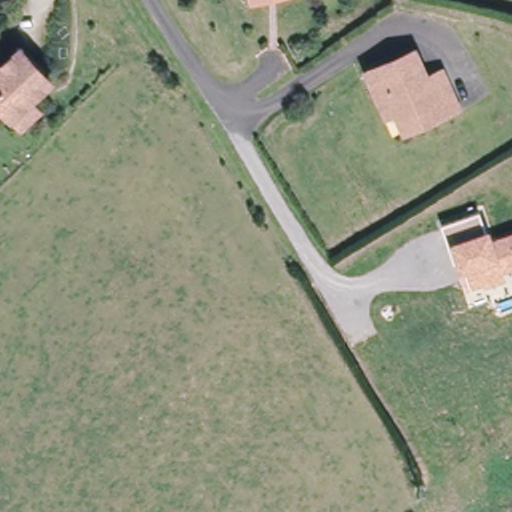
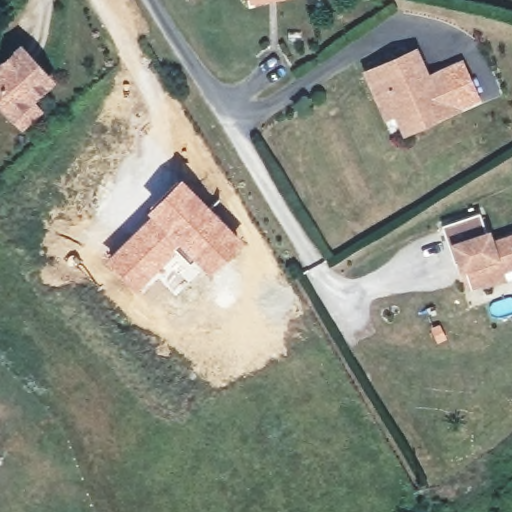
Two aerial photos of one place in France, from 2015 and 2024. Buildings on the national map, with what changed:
unchanged [(25,128),(17,119),(0,99),(0,70),(23,48),(54,83),(35,101),(43,112),(25,128)]
unchanged [(419,80),(435,73),(451,112),(434,120),(432,114),(394,129),(377,91),(368,95),(359,71),(408,54),(419,80)]
new [(148,214),(145,211),(180,176),(243,241),(208,275),(180,247),(136,291),(104,260),(148,214)]
unchanged [(502,279),(487,285),(485,281),(469,286),(462,265),(456,268),(442,228),(480,214),(491,246),(512,239),(512,266),(498,271),(502,279)]

